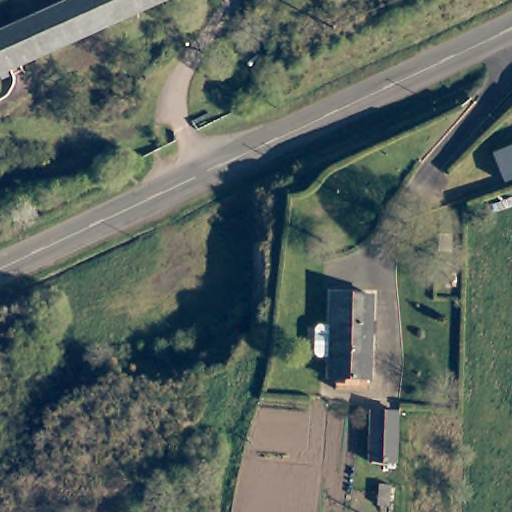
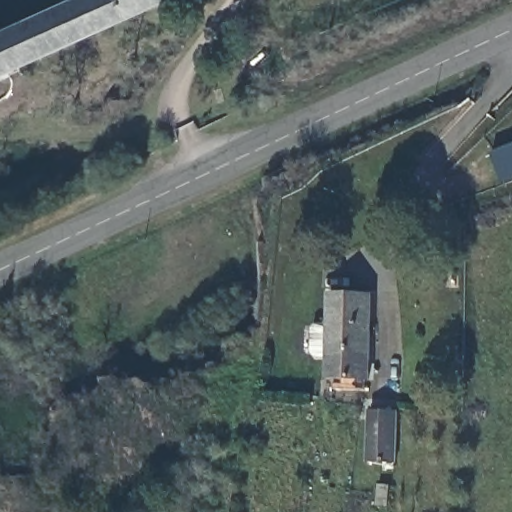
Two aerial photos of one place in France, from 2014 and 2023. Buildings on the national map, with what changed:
unchanged [(83,0),(164,0),(166,4),(0,76),(0,35),(83,0)]
unchanged [(512,186),(499,158),(512,153),(512,186)]
unchanged [(433,251),(434,246),(443,249),(441,254),(433,251)]
unchanged [(318,329),(322,325),(334,326),(336,295),(377,297),(373,381),(368,381),(367,391),(336,390),(337,379),(332,379),(333,358),(321,357),(317,353),(318,329)]
unchanged [(374,413),(400,414),(401,414),(399,449),(398,464),(371,463),(374,413)]
unchanged [(370,496),(373,478),(383,479),(380,498),(370,496)]

